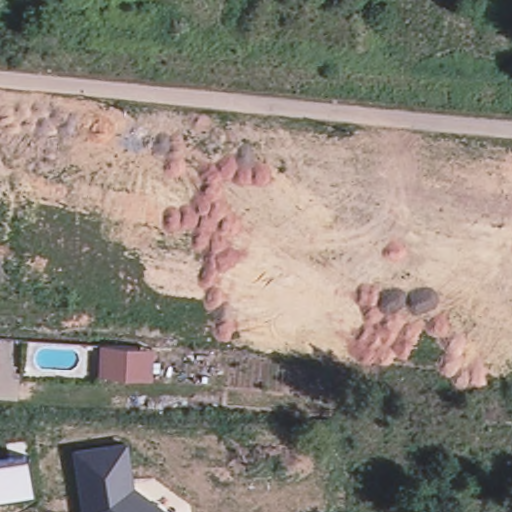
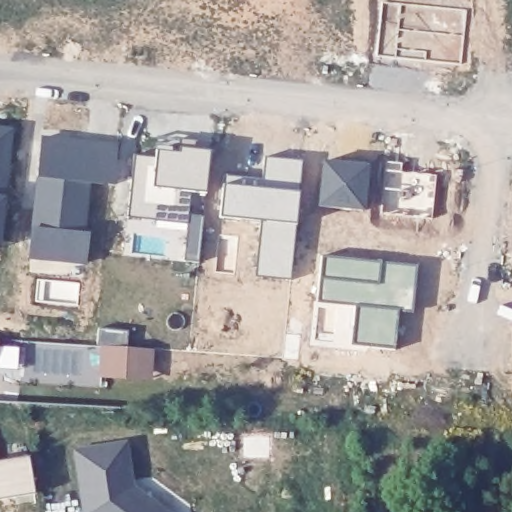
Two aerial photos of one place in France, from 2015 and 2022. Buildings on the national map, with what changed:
new [(466,11),(461,65),(377,56),(382,2),(466,11)]
new [(13,127),(4,247),(0,247),(0,126),(13,127)]
new [(35,206),(42,207),(45,189),(37,187),(42,136),(116,145),(112,182),(87,179),(81,233),(86,233),(83,260),(30,255),(35,206)]
new [(127,215),(126,215),(132,153),(155,155),(155,149),(176,150),(178,137),(210,140),(205,191),(190,190),(186,217),(186,222),(127,215)]
new [(263,179),(266,159),(303,161),(292,280),(258,277),(263,220),(223,216),(226,176),(263,179)]
new [(402,163),(401,174),(436,177),(433,220),(381,215),(387,161),(402,163)]
new [(369,166),(366,210),(321,204),(325,162),(369,166)]
new [(417,266),(412,312),(399,309),(395,347),(355,344),(358,305),(320,301),(325,257),(417,266)]
unchanged [(136,346),(135,376),(100,373),(101,344),(136,346)]
unchanged [(131,440),(138,488),(165,512),(82,512),(73,448),(131,440)]
new [(15,495),(3,497),(0,478),(0,459),(28,455),(33,487),(34,492),(15,495)]
new [(3,497),(0,498),(0,478),(3,497)]

